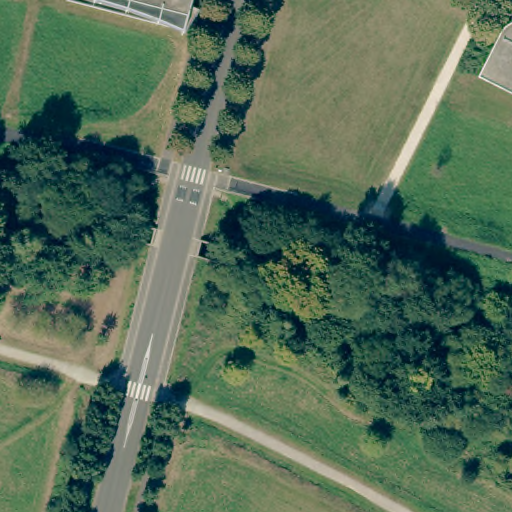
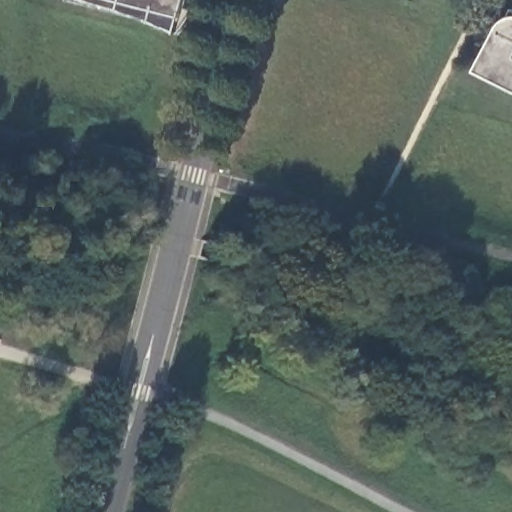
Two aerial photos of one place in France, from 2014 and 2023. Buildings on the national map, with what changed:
unchanged [(201,0),(199,7),(196,22),(114,0),(201,0)]
unchanged [(483,70),(512,13),(512,84),(483,70)]

